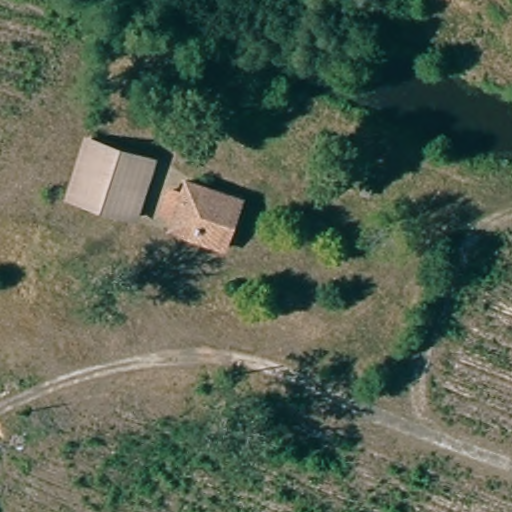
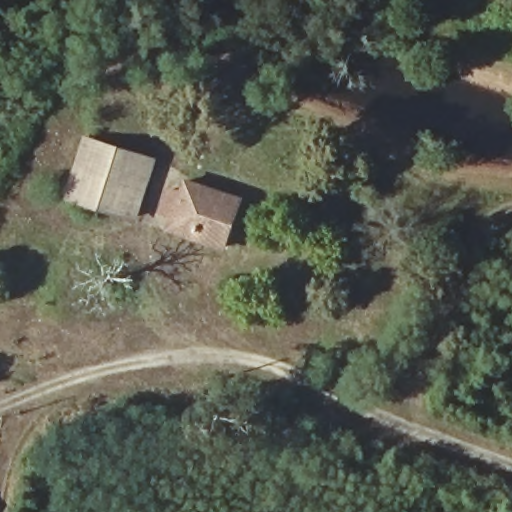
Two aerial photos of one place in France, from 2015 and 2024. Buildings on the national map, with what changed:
unchanged [(81,141),(149,165),(132,218),(64,194),(81,141)]
unchanged [(161,213),(167,192),(180,197),(185,183),(239,203),(224,251),(169,232),(174,218),(161,213)]

